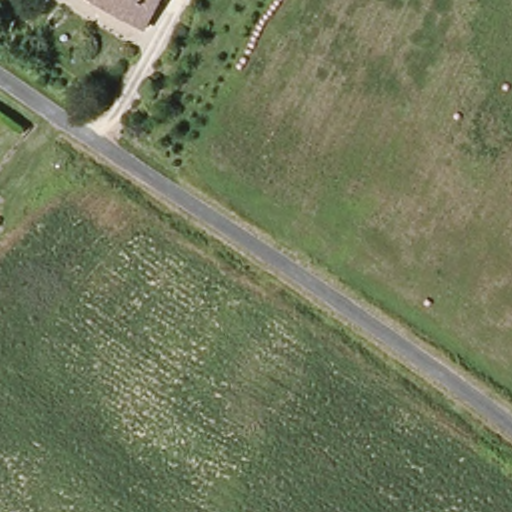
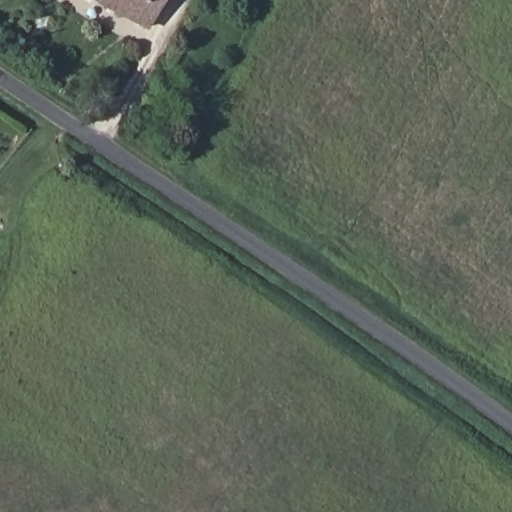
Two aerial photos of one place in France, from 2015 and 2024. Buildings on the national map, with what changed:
unchanged [(94,0),(160,0),(144,29),(94,0)]

